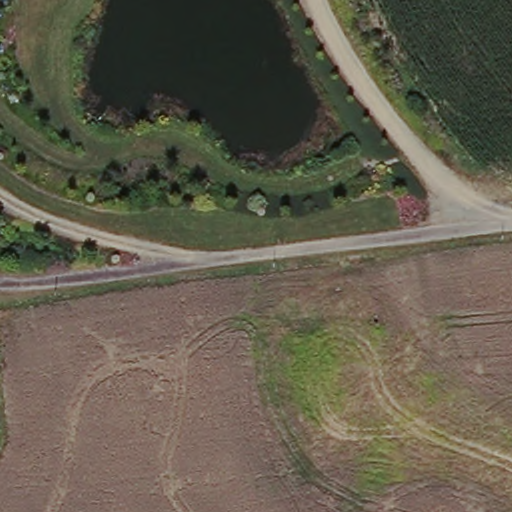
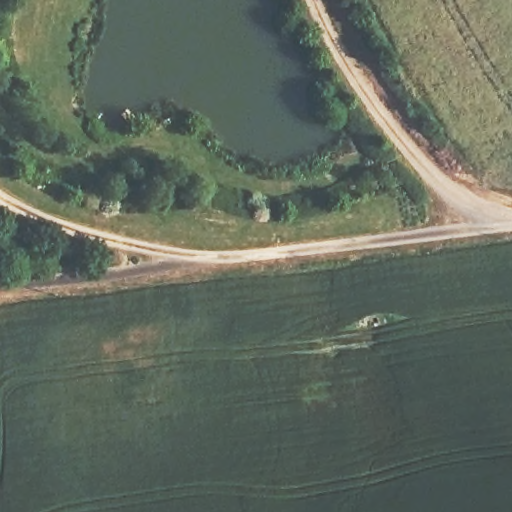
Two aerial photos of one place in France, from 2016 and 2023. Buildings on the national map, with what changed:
[]

